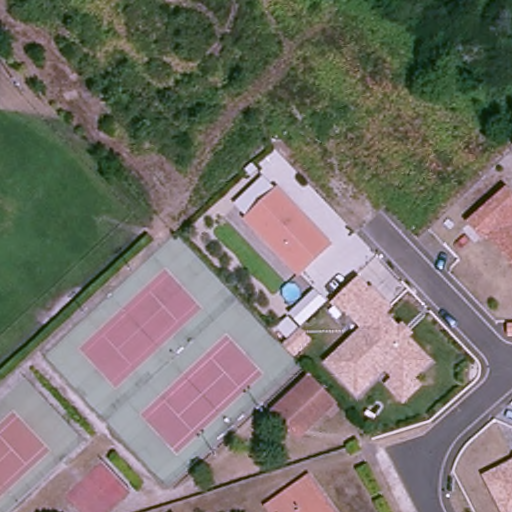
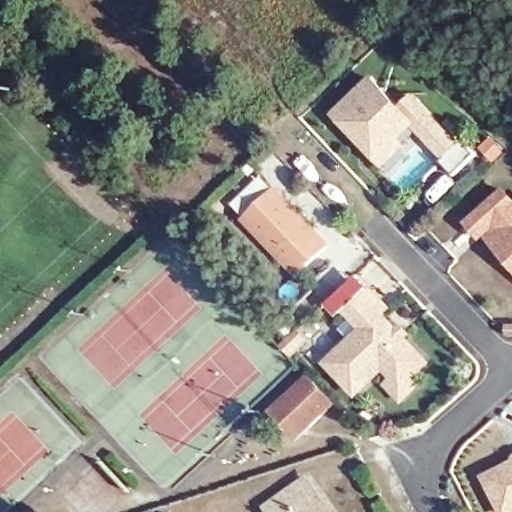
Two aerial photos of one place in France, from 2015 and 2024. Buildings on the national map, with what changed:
new [(476,154),(453,175),(440,161),(445,157),(428,140),(412,123),(396,139),(402,145),(382,164),(370,151),(363,144),(334,114),(371,79),(400,109),(412,97),(442,127),(457,145),(462,140),(476,154)]
unchanged [(276,190),(327,244),(297,272),(246,218),(276,190)]
unchanged [(508,195),(512,199),(512,241),(501,228),(490,238),(477,224),(508,195)]
unchanged [(401,404),(387,390),(394,382),(383,371),(355,398),(326,367),(362,332),(346,316),(370,293),(387,311),(381,318),(397,335),(402,331),(408,338),(404,342),(427,365),(409,382),(416,390),(401,404)]
unchanged [(512,323),(512,334),(506,335),(506,323),(512,323)]
unchanged [(297,328),(308,339),(293,353),(283,342),(297,328)]
unchanged [(272,411),(285,400),(310,376),(336,404),(311,427),(298,439),(272,411)]
unchanged [(505,512),(490,480),(512,469),(512,512),(505,512)]
unchanged [(324,493),(337,512),(283,512),(277,503),(317,475),(328,490),(324,493)]

